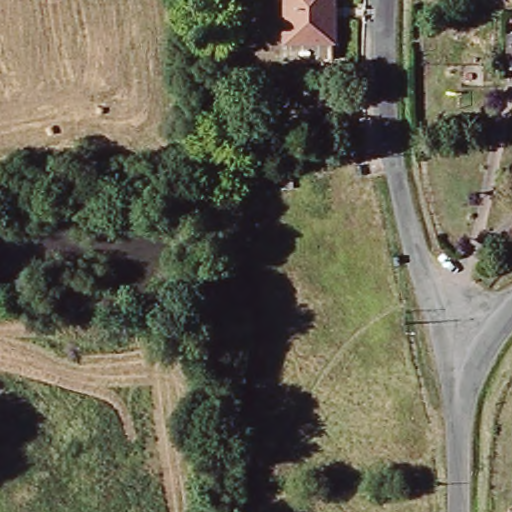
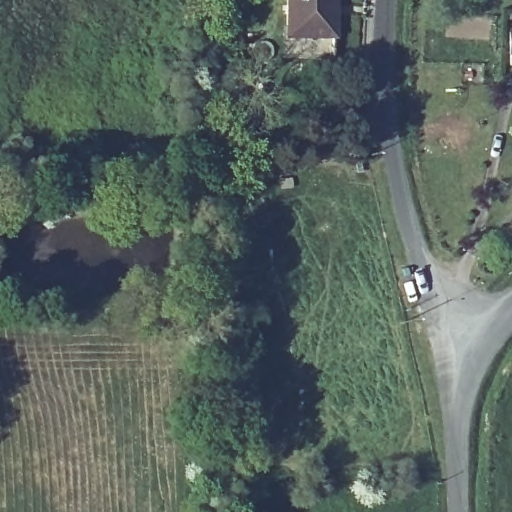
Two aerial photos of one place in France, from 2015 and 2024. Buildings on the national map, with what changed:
unchanged [(293,47),(290,0),(336,0),(338,45),(293,47)]

